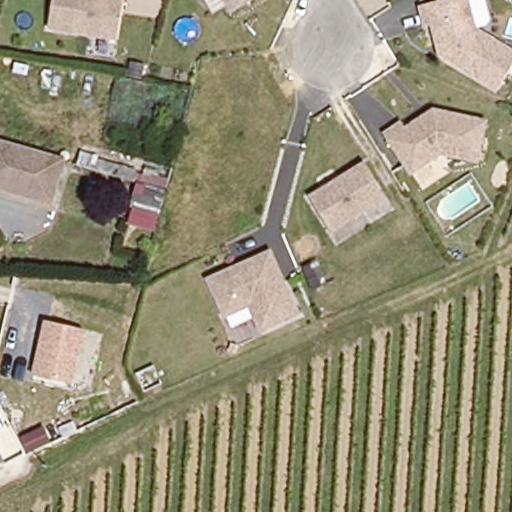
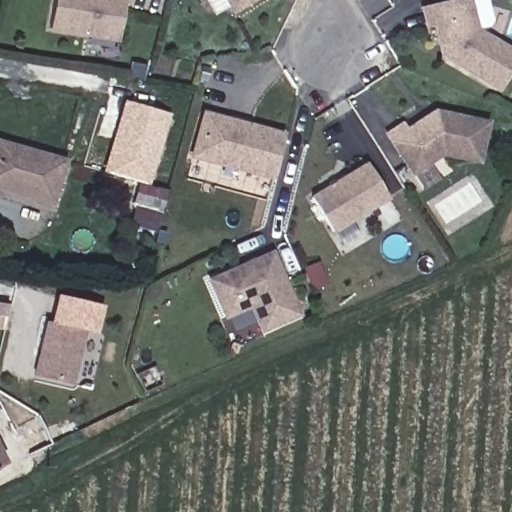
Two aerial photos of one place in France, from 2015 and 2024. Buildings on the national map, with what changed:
unchanged [(121,39),(53,27),(57,0),(128,0),(121,39)]
unchanged [(235,9),(230,0),(250,0),(235,9)]
unchanged [(446,45),(440,45),(436,27),(428,28),(424,8),(454,0),(470,0),(478,28),(512,49),(512,72),(502,90),(444,55),(447,52),(446,45)]
unchanged [(512,90),(512,106),(507,104),(512,90)]
new [(103,168),(122,100),(167,114),(148,181),(103,168)]
new [(284,132),(271,180),(189,158),(201,110),(284,132)]
unchanged [(486,120),(480,160),(441,153),(411,173),(387,138),(403,127),(407,133),(423,121),(427,124),(435,118),(433,113),(486,120)]
unchanged [(60,160),(50,199),(0,185),(0,143),(60,160)]
unchanged [(365,161),(386,196),(332,231),(311,196),(365,161)]
unchanged [(126,221),(136,182),(169,190),(157,229),(126,221)]
unchanged [(241,271),(249,269),(248,264),(273,252),(300,314),(263,331),(253,306),(228,317),(210,280),(240,267),(241,271)]
new [(58,294),(104,306),(97,332),(86,330),(50,321),(58,294)]
unchanged [(86,330),(73,384),(33,374),(46,320),(86,330)]
unchanged [(7,462),(0,466),(0,448),(7,462)]

